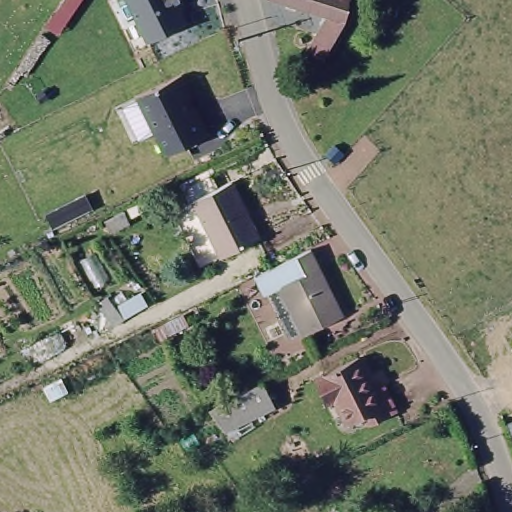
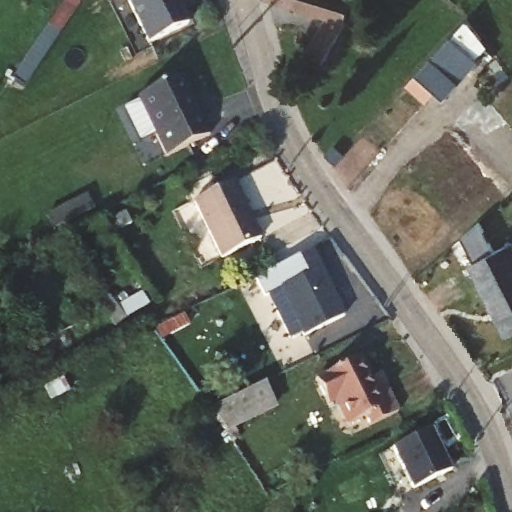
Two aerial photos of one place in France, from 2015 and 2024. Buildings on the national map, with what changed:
new [(25,87),(12,79),(64,0),(82,0),(25,87)]
unchanged [(185,20),(148,37),(129,0),(175,0),(185,20)]
unchanged [(343,11),(350,14),(330,53),(321,49),(309,43),(325,10),(317,4),(303,0),(349,0),(343,11)]
new [(426,102),(407,85),(465,22),(490,44),(475,59),(478,61),(445,99),(437,91),(426,102)]
unchanged [(208,135),(164,155),(137,97),(182,75),(208,135)]
unchanged [(228,184),(258,240),(221,259),(192,202),(228,184)]
new [(512,333),(506,336),(467,265),(512,243),(512,333)]
unchanged [(312,254),(343,311),(309,328),(287,287),(270,296),(262,280),(312,254)]
unchanged [(349,358),(367,391),(373,388),(388,415),(360,430),(353,418),(340,425),(329,406),(321,411),(303,379),(349,358)]
unchanged [(277,408),(222,437),(208,410),(263,382),(277,408)]
new [(392,449),(431,429),(450,470),(411,490),(392,449)]

